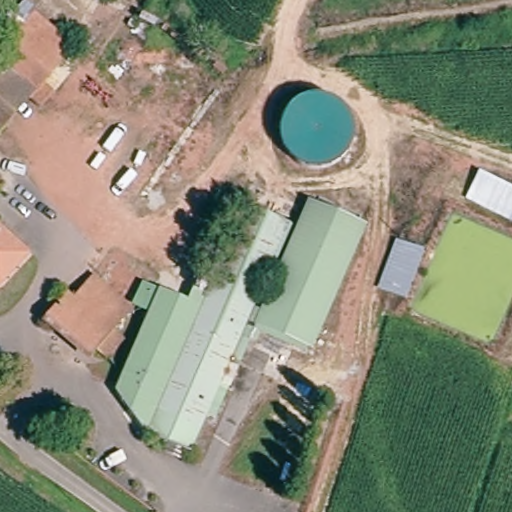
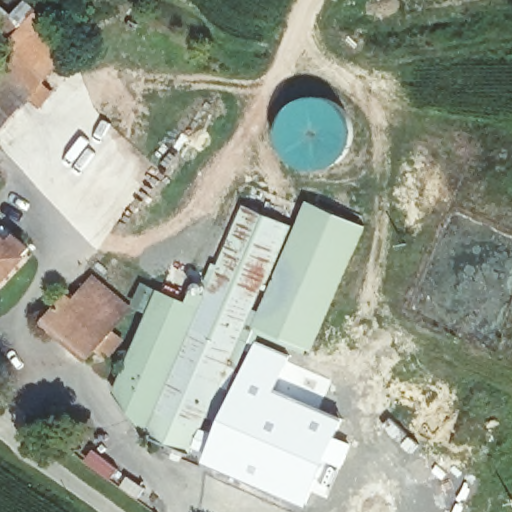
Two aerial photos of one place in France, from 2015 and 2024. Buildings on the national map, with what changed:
unchanged [(0,8),(6,0),(21,0),(79,43),(57,73),(9,39),(0,31),(0,8)]
unchanged [(18,122),(0,109),(0,51),(9,39),(57,73),(18,122)]
unchanged [(280,139),(279,127),(284,114),(295,104),(308,100),(325,101),(343,109),(351,122),(354,133),(352,146),(342,161),(328,169),(316,170),(303,167),(296,163),(285,151),(280,139)]
unchanged [(313,344),(256,324),(301,198),(360,219),(313,344)]
unchanged [(162,456),(165,444),(146,436),(202,290),(196,287),(229,200),(287,222),(251,323),(255,325),(249,342),(238,337),(192,455),(187,453),(184,465),(162,456)]
unchanged [(11,272),(4,280),(0,276),(0,229),(28,251),(11,272)]
unchanged [(109,360),(98,353),(92,362),(46,325),(62,300),(71,306),(88,284),(94,288),(128,313),(112,334),(123,341),(109,360)]
unchanged [(113,398),(131,348),(153,291),(192,306),(143,435),(113,398)]
new [(223,418),(234,405),(258,341),(290,354),(288,361),(281,376),(325,395),(320,407),(344,418),(337,436),(312,493),(306,506),(205,462),(223,418)]

